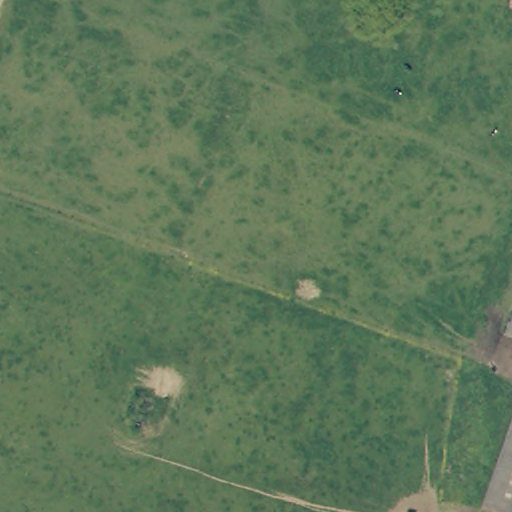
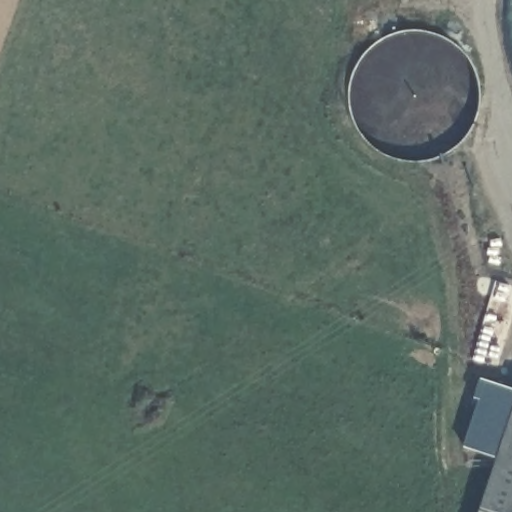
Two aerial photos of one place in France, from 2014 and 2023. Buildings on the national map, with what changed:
new [(461,445),(477,398),(472,396),(479,379),(512,391),(512,413),(495,458),(461,445)]
unchanged [(512,413),(512,512),(496,512),(478,505),(512,413)]
new [(476,512),(478,505),(496,512),(476,512)]

